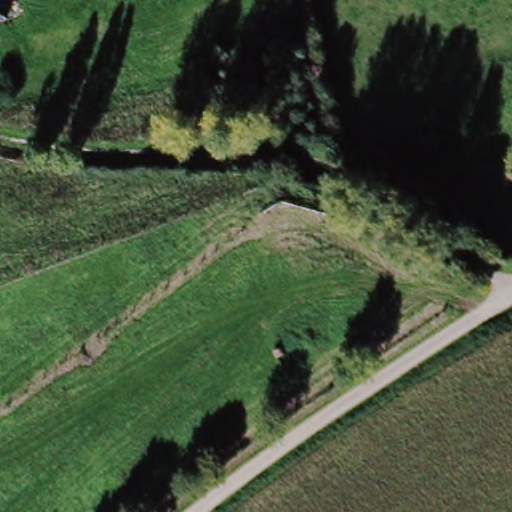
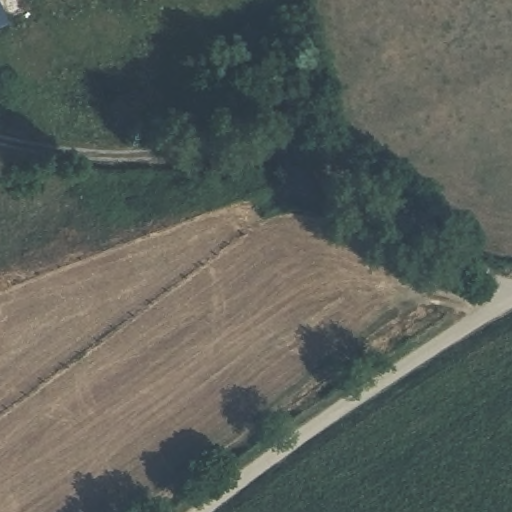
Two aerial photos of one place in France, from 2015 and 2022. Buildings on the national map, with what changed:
unchanged [(0,25),(0,19),(2,24),(0,25)]

